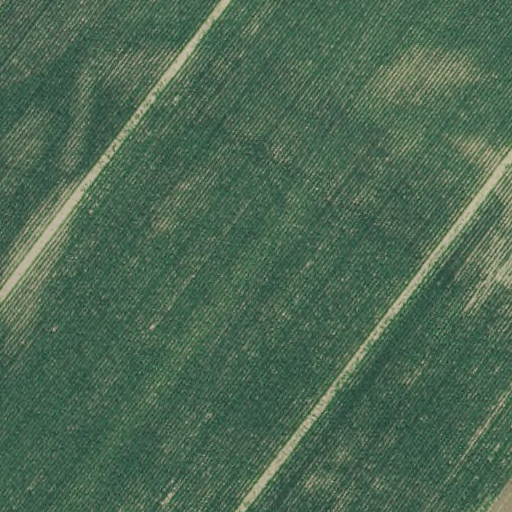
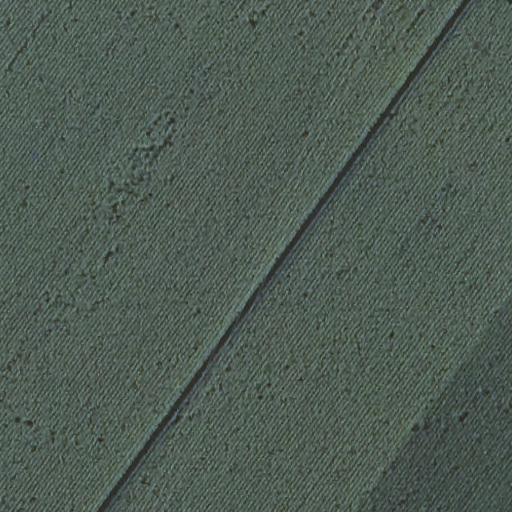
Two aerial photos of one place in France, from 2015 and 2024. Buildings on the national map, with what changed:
[]

